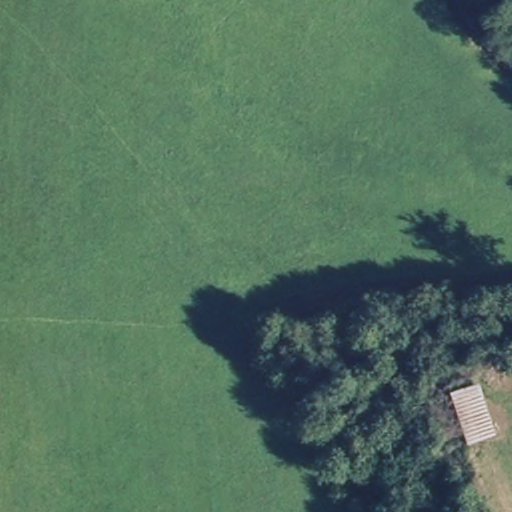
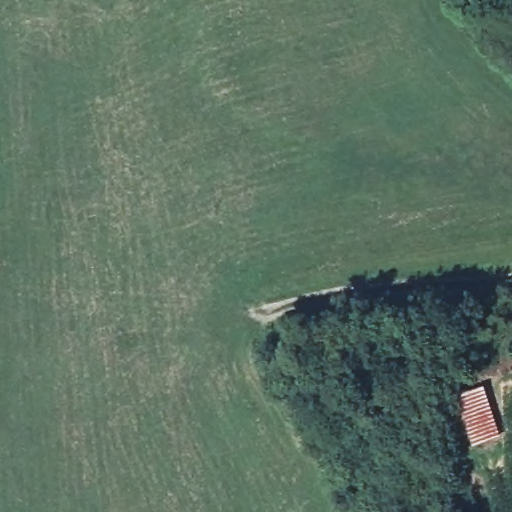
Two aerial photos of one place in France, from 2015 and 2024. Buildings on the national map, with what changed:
unchanged [(474,443),(464,400),(488,392),(501,434),(474,443)]

